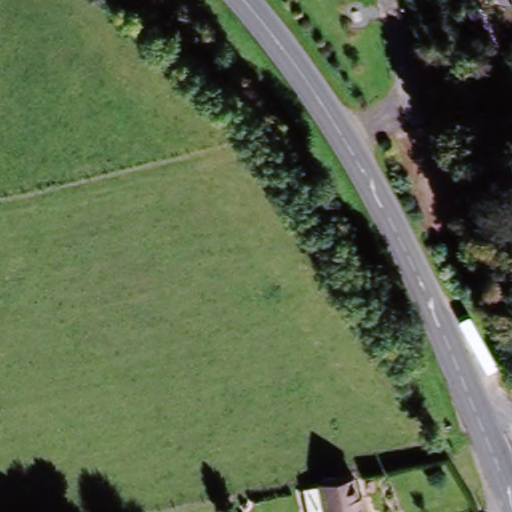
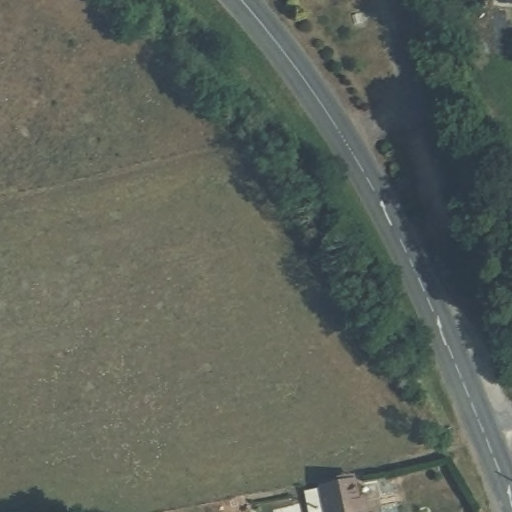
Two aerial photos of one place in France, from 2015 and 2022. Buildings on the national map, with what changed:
unchanged [(496,0),(512,0),(512,2),(496,0)]
unchanged [(316,485),(350,478),(356,509),(361,507),(362,512),(305,512),(305,510),(321,506),(316,485)]

